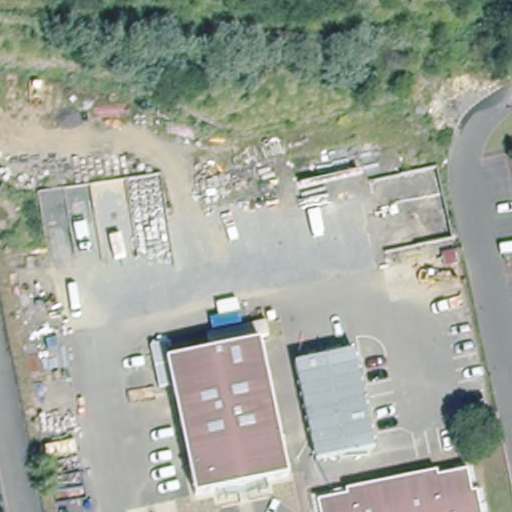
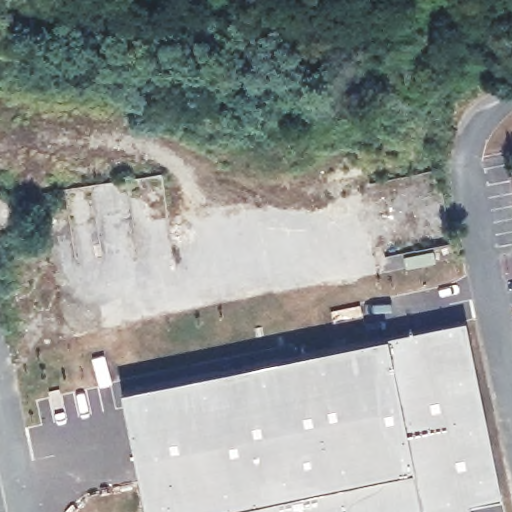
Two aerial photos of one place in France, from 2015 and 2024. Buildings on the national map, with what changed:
new [(466,318),(502,497),(470,502),(471,512),(148,512),(123,390),(387,335),(466,318)]
demolished [(286,479),(193,498),(166,361),(258,342),(286,479)]
demolished [(340,506),(351,504),(354,504),(353,498),(444,480),(445,484),(474,479),(478,501),(485,501),(487,512),(326,512),(326,509),(340,506)]

